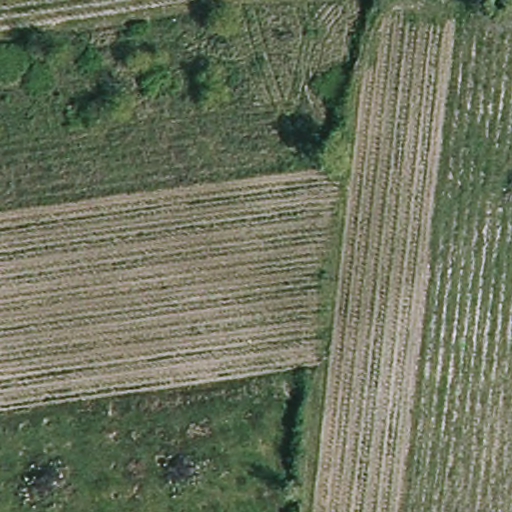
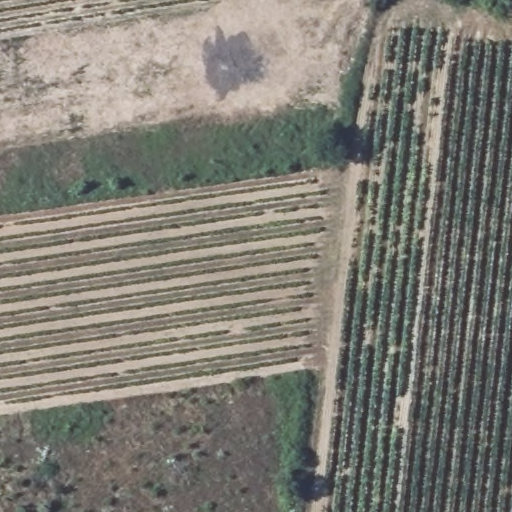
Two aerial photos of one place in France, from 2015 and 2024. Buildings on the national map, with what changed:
[]

